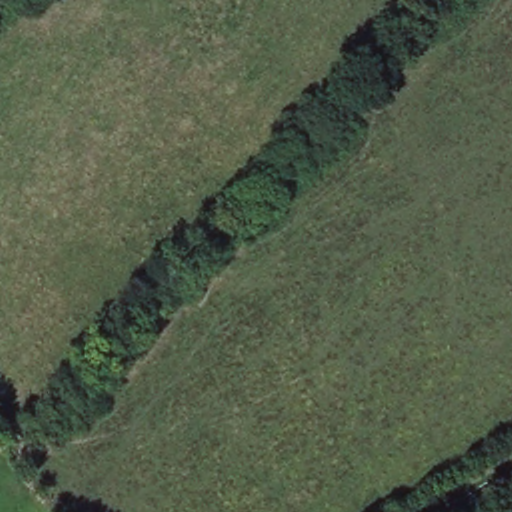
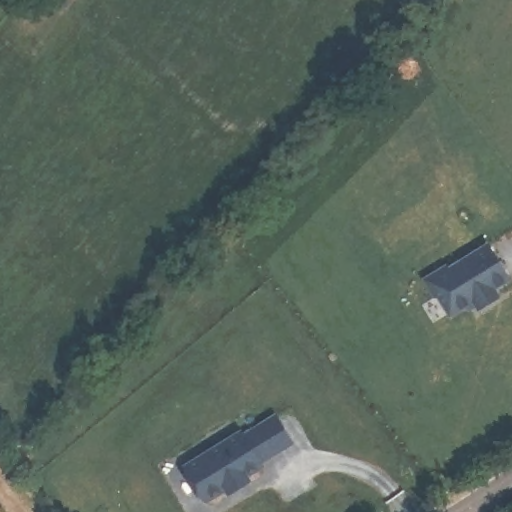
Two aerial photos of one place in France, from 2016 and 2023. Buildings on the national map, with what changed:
new [(492,234),(512,270),(512,275),(494,289),(499,295),(477,306),(475,301),(446,317),(426,277),(492,234)]
new [(242,430),(245,435),(276,415),(292,441),(258,461),(262,465),(237,479),(241,485),(230,492),(226,486),(209,496),(187,465),(242,430)]

